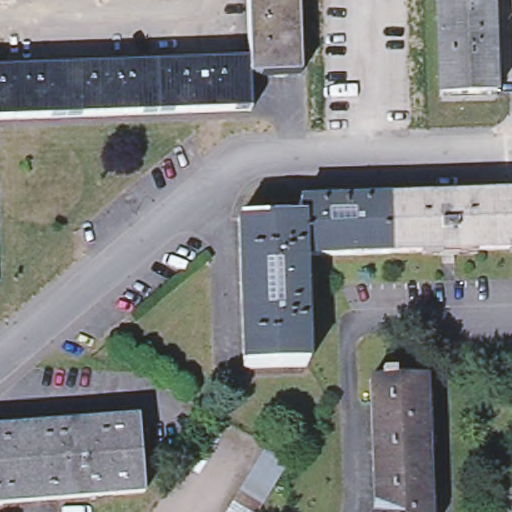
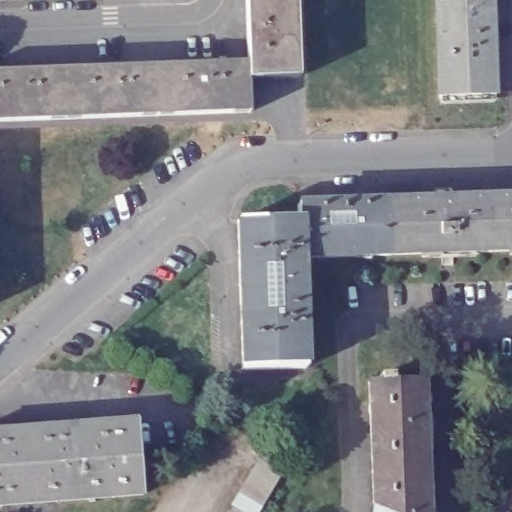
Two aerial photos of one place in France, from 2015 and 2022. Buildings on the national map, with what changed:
unchanged [(249,85),(248,67),(247,0),(298,0),(300,84),(249,85)]
unchanged [(434,0),(488,0),(489,48),(435,50),(434,0)]
unchanged [(489,48),(490,101),(436,104),(435,50),(489,48)]
unchanged [(250,118),(0,125),(0,73),(248,67),(249,85),(250,118)]
unchanged [(512,209),(512,262),(390,267),(387,214),(512,209)]
unchanged [(243,383),(237,233),(297,230),(297,218),(387,214),(390,267),(302,270),(307,380),(276,382),(269,382),(243,383)]
unchanged [(370,388),(380,387),(380,382),(392,381),(392,387),(423,386),(428,512),(374,512),(370,388)]
unchanged [(0,506),(0,431),(136,422),(142,495),(0,506)]
unchanged [(265,449),(288,463),(260,512),(228,512),(265,449)]

